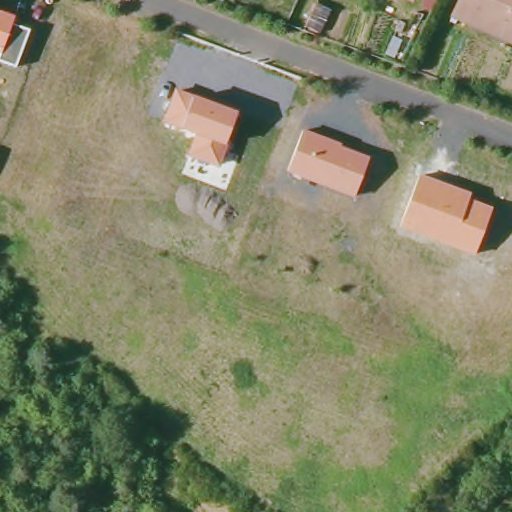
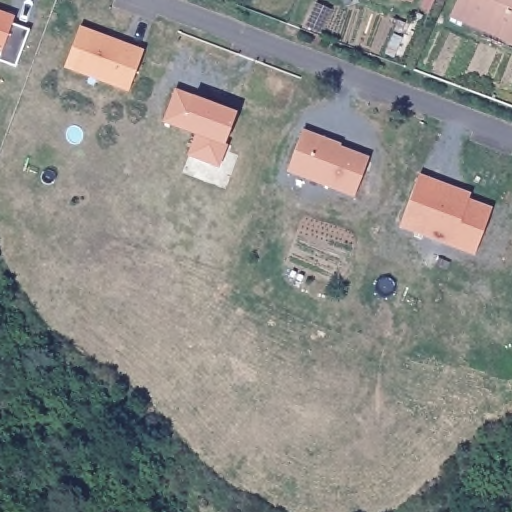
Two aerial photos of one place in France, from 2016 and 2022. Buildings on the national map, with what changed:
unchanged [(460,0),(512,0),(512,40),(455,15),(460,0)]
unchanged [(13,15),(10,24),(27,30),(14,67),(0,62),(0,10),(13,15)]
new [(127,92),(61,68),(80,26),(143,50),(127,92)]
unchanged [(194,96),(236,111),(225,146),(219,167),(187,156),(195,135),(182,130),(163,123),(175,90),(194,96)]
unchanged [(300,128),(341,142),(340,146),(367,156),(350,196),(285,171),(300,128)]
unchanged [(470,193),(470,197),(492,208),(474,256),(399,227),(419,175),(470,193)]

